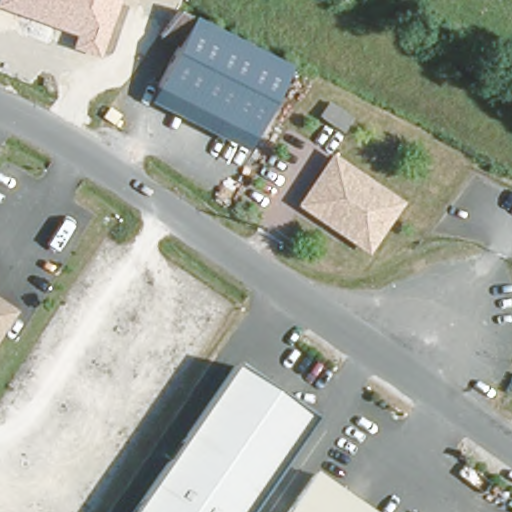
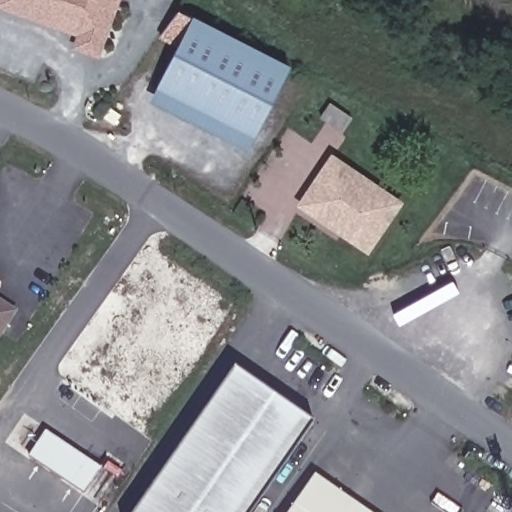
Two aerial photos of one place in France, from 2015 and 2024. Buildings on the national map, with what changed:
unchanged [(100,58),(71,48),(76,35),(0,8),(0,0),(120,0),(100,58)]
unchanged [(178,39),(160,31),(178,5),(237,35),(289,61),(253,132),(155,83),(178,39)]
unchanged [(246,146),(149,97),(155,83),(253,132),(246,146)]
unchanged [(109,106),(121,115),(114,126),(102,117),(109,106)]
unchanged [(301,205),(332,159),(398,203),(367,250),(301,205)]
unchanged [(12,313),(0,333),(0,305),(12,313)]
unchanged [(247,512),(127,512),(230,364),(311,419),(287,454),(247,512)]
new [(29,455),(46,430),(101,467),(84,493),(29,455)]
unchanged [(363,512),(287,512),(311,476),(363,512)]

